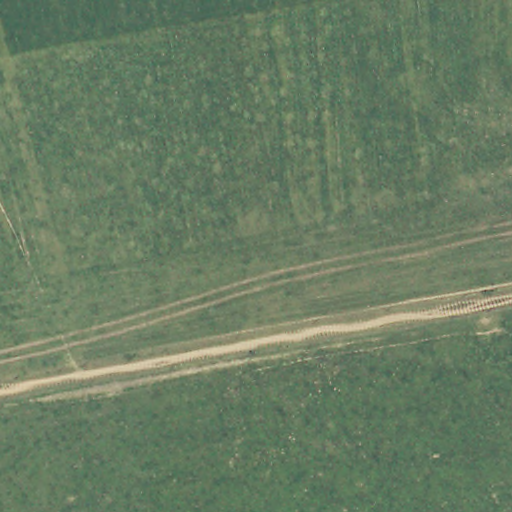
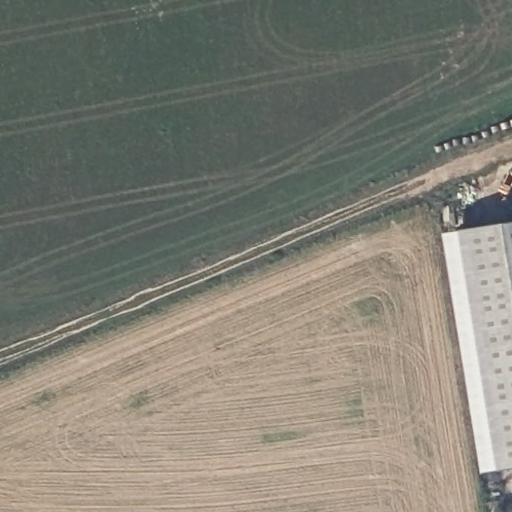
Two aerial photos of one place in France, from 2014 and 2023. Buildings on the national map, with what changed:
new [(451,230),(512,221),(512,467),(489,470),(451,230)]

